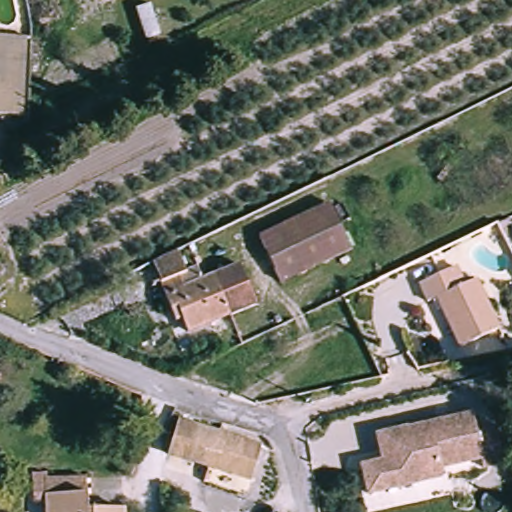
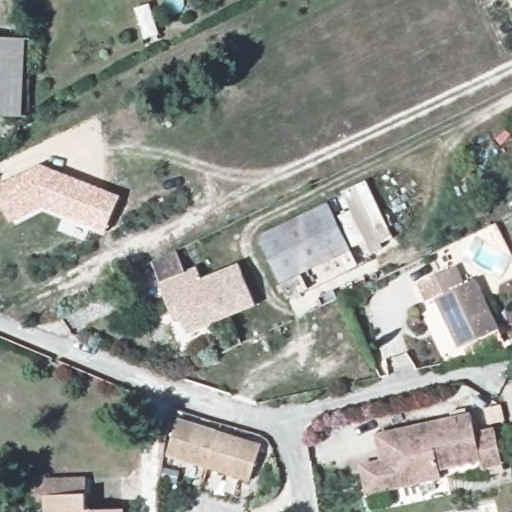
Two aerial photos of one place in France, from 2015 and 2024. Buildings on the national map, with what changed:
new [(511,3),(509,0),(512,0),(512,2),(511,3)]
unchanged [(23,109),(0,110),(0,33),(18,31),(23,109)]
new [(43,207),(11,223),(0,202),(0,184),(43,164),(122,195),(107,231),(43,207)]
unchanged [(353,245),(284,280),(264,240),(261,233),(329,200),(331,206),(353,245)]
unchanged [(161,290),(156,278),(155,275),(148,262),(166,253),(173,265),(180,280),(182,285),(240,261),(258,300),(190,328),(183,312),(173,317),(168,307),(161,290)]
unchanged [(452,262),(460,278),(474,273),(498,324),(458,342),(434,293),(424,297),(416,279),(452,262)]
unchanged [(180,413),(259,444),(247,477),(168,446),(180,413)]
unchanged [(504,461),(483,466),(481,456),(442,467),(444,476),(370,494),(364,468),(386,463),(380,436),(472,413),(476,431),(495,426),(504,461)]
unchanged [(30,491),(30,488),(30,478),(30,464),(44,464),(44,469),(85,468),(85,482),(86,502),(126,503),(126,512),(44,512),(44,491),(30,491)]

